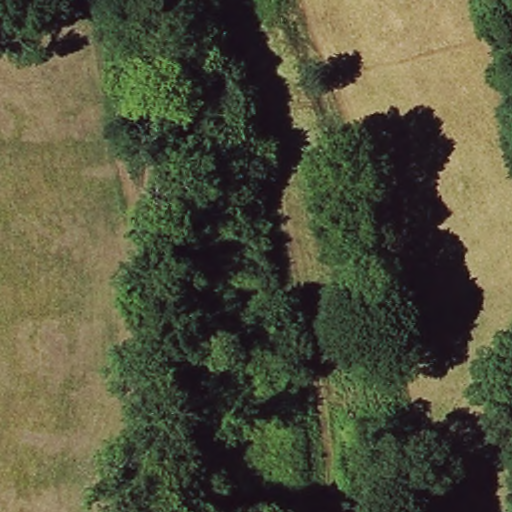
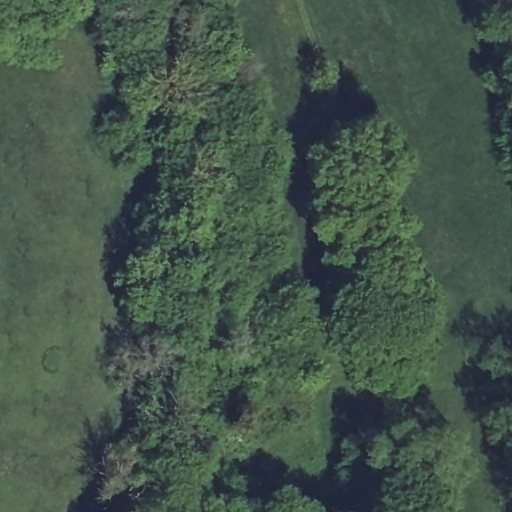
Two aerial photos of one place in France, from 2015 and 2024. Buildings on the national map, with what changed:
[]

